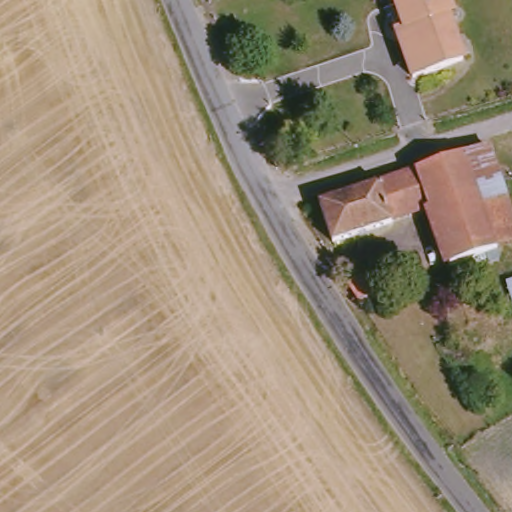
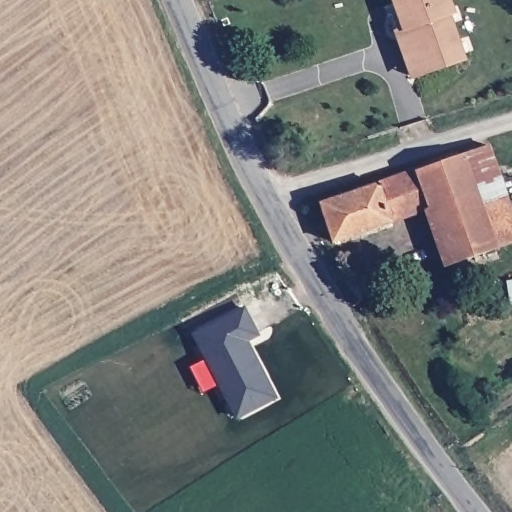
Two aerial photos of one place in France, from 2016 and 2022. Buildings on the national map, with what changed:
unchanged [(396,29),(405,26),(395,0),(448,0),(452,10),(447,12),(463,56),(426,69),(412,74),(396,29)]
unchanged [(501,250),(469,155),(492,147),(512,204),(512,246),(501,250)]
unchanged [(501,250),(454,265),(435,209),(421,171),(469,155),(501,250)]
unchanged [(435,209),(397,222),(383,184),(421,171),(435,209)]
unchanged [(397,222),(337,242),(324,203),(383,184),(397,222)]
unchanged [(361,275),(372,292),(361,301),(349,282),(361,275)]
new [(194,332),(244,307),(257,332),(246,337),(274,393),(238,412),(194,332)]

